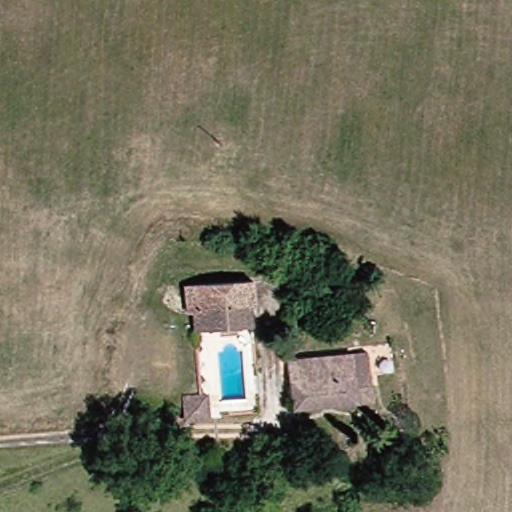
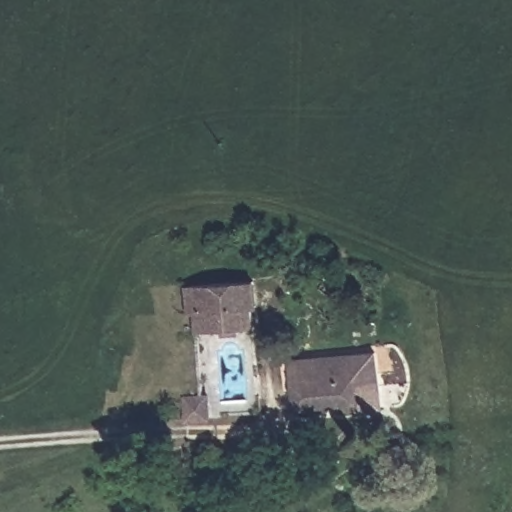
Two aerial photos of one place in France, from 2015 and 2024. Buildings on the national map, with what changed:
unchanged [(200,285),(264,281),(267,330),(202,334),(200,285)]
unchanged [(387,386),(370,387),(370,402),(307,408),(300,358),(382,348),(387,386)]
unchanged [(217,392),(217,415),(205,415),(190,416),(188,391),(202,391),(217,392)]
unchanged [(420,456),(402,457),(402,441),(408,441),(418,436),(420,456)]

